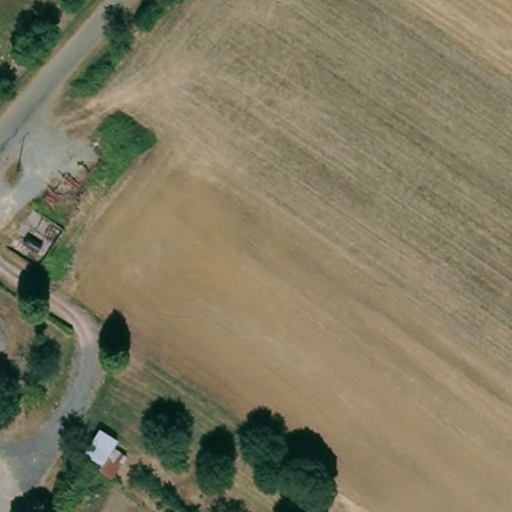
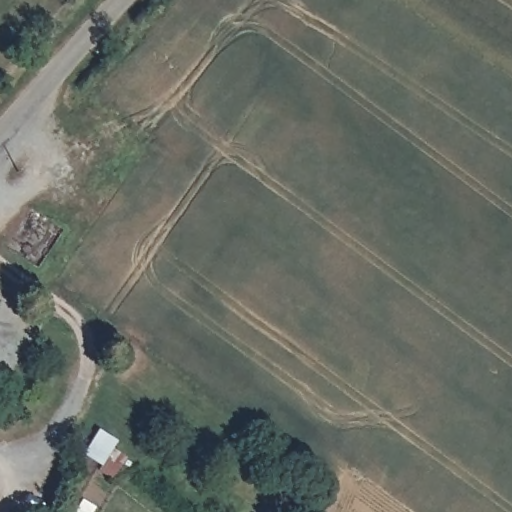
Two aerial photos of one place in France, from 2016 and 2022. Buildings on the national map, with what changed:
unchanged [(100,429),(119,440),(114,448),(122,454),(114,470),(105,465),(102,469),(83,455),(100,429)]

